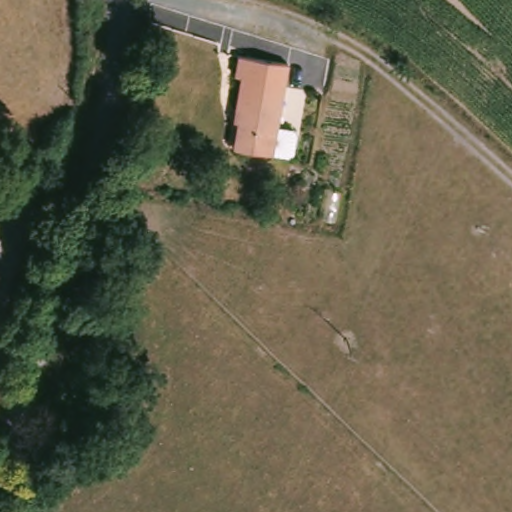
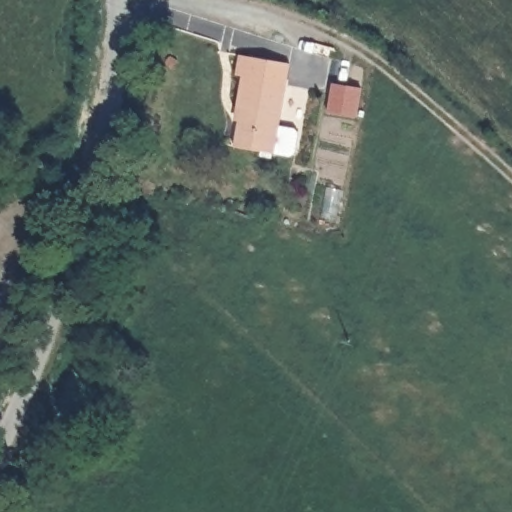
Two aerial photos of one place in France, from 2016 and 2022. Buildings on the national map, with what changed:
unchanged [(236,146),(241,120),(242,111),(239,110),(245,75),(239,74),(242,55),(293,64),(281,127),(297,130),(300,134),(296,154),(292,157),(276,154),(236,146)]
unchanged [(0,281),(0,273),(4,276),(0,281)]

